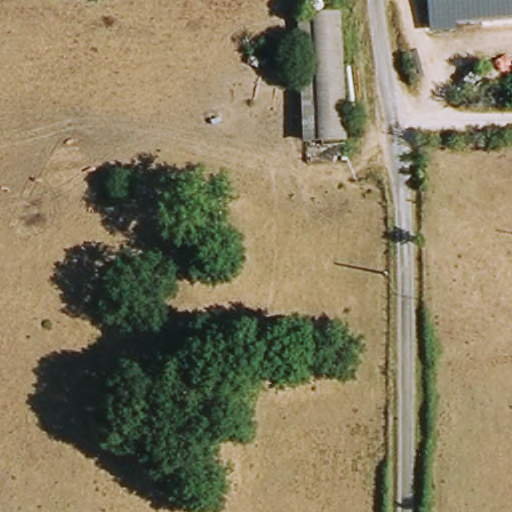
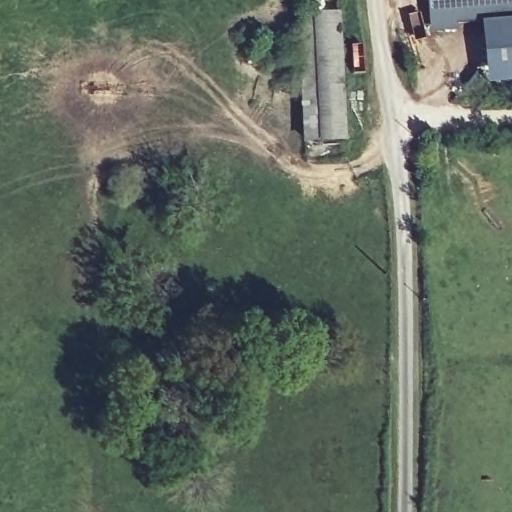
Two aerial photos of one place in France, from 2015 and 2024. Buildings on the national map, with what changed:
unchanged [(431,0),(512,0),(512,17),(432,24),(431,0)]
new [(489,86),(482,20),(512,17),(512,84),(489,86)]
unchanged [(310,20),(352,21),(348,140),(306,139),(310,20)]
unchanged [(153,176),(179,177),(178,192),(152,191),(153,176)]

